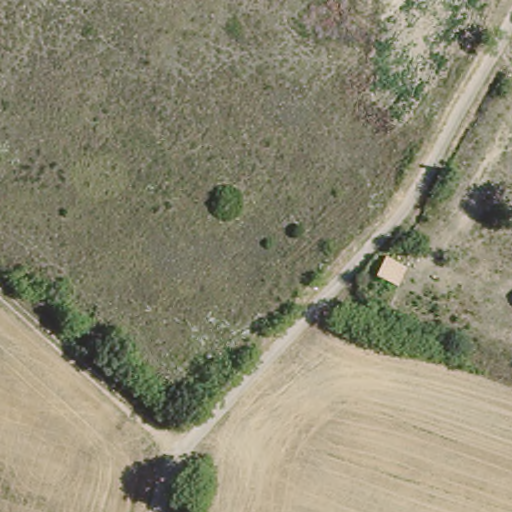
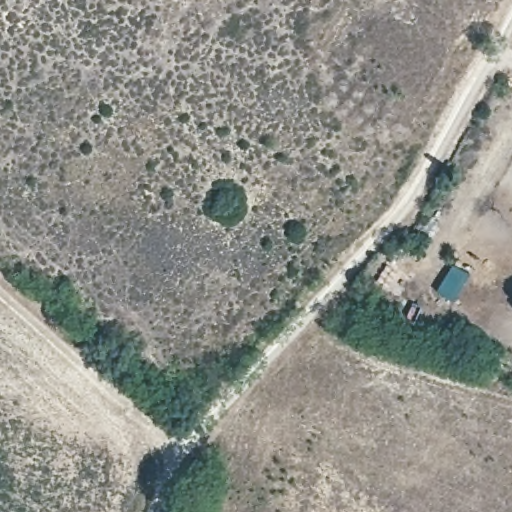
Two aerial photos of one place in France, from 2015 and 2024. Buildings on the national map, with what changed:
unchanged [(402,265),(397,282),(375,275),(382,257),(402,265)]

